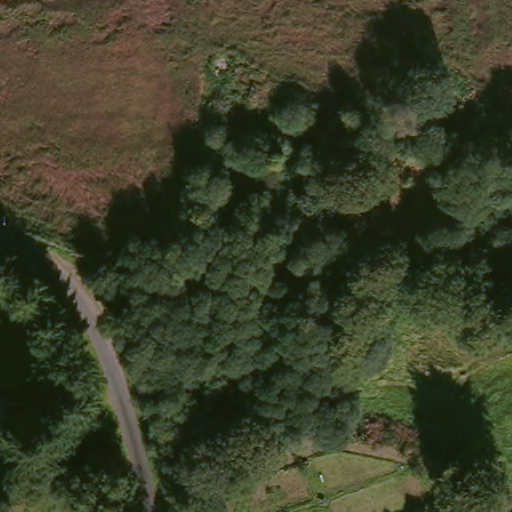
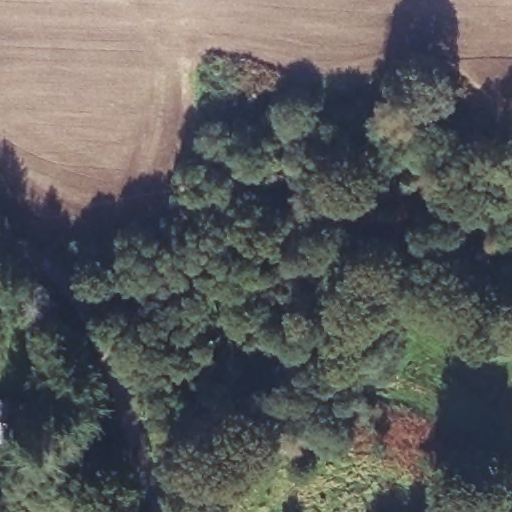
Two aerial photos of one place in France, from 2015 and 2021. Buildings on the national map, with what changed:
unchanged [(281,155),(276,182),(241,174),(246,148),(281,155)]
unchanged [(0,440),(0,399),(22,402),(16,442),(0,440)]

